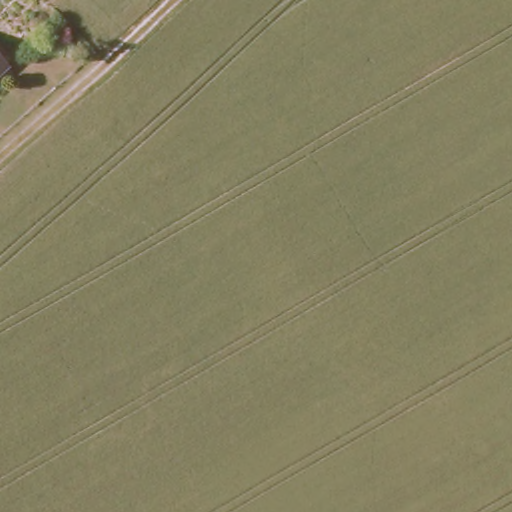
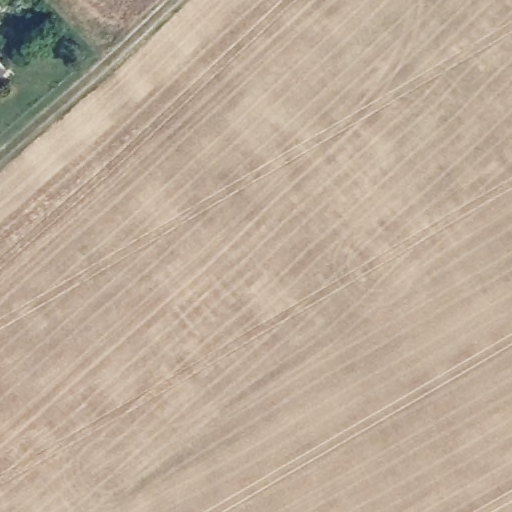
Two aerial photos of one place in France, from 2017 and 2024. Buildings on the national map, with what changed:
unchanged [(0,74),(0,52),(11,64),(0,74)]

